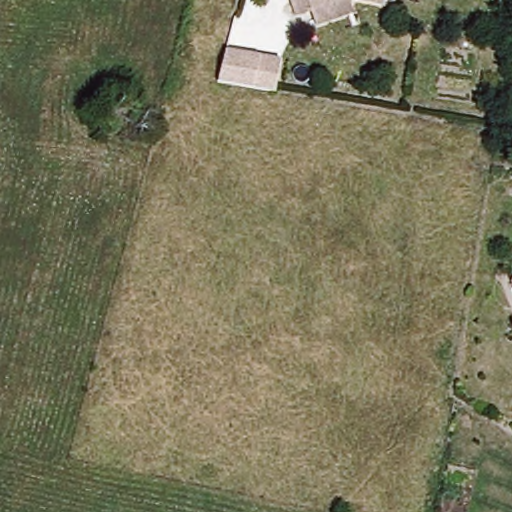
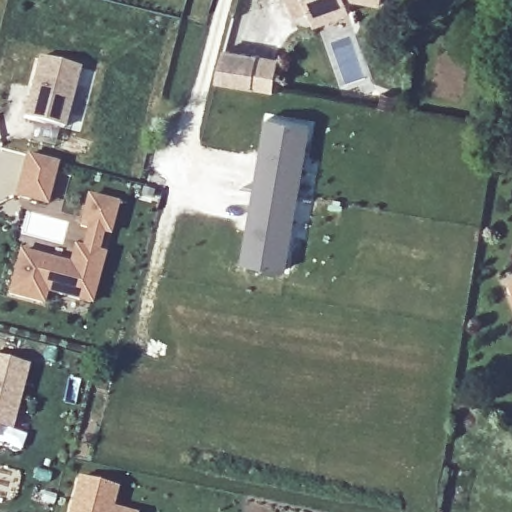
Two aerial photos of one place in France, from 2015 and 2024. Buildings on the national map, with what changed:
unchanged [(314,27),(309,13),(294,18),(287,0),(347,0),(351,14),(314,27)]
unchanged [(383,5),(350,0),(383,0),(383,5)]
unchanged [(281,57),(275,92),(217,82),(227,45),(281,57)]
new [(81,67),(65,126),(22,116),(37,56),(81,67)]
new [(269,114),(316,121),(288,268),(243,260),(269,114)]
new [(27,155),(55,163),(44,203),(15,196),(27,155)]
new [(115,205),(108,232),(102,231),(96,252),(103,254),(91,302),(45,291),(42,303),(8,295),(20,252),(70,265),(74,247),(84,249),(88,229),(80,226),(87,198),(115,205)]
unchanged [(512,285),(512,298),(507,287),(512,285)]
new [(26,366),(9,429),(0,427),(0,359),(26,366)]
new [(108,508),(120,512),(68,512),(78,477),(114,487),(108,508)]

